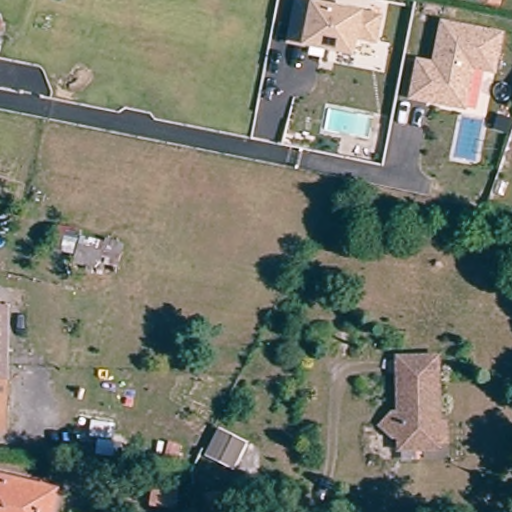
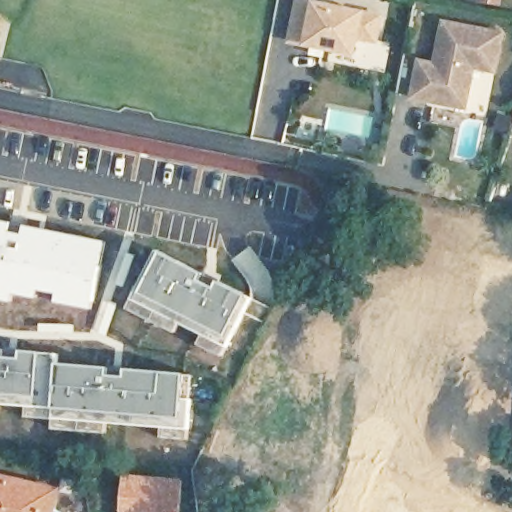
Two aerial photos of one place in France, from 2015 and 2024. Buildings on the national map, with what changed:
unchanged [(312,52),(313,45),(292,41),(300,1),(382,17),(377,41),(358,37),(355,53),(325,48),(324,55),(312,52)]
unchanged [(413,98),(420,61),(436,65),(444,23),(503,34),(495,72),(474,68),(470,89),(466,109),(446,105),(429,101),(413,98)]
unchanged [(512,109),(508,119),(496,114),(501,100),(512,104),(512,109)]
new [(105,241),(91,310),(53,303),(55,296),(38,293),(36,299),(13,295),(12,303),(0,301),(0,220),(105,241)]
new [(249,245),(268,274),(273,286),(274,294),(271,294),(268,301),(253,295),(252,294),(230,259),(249,245)]
new [(159,249),(252,296),(221,357),(196,345),(200,335),(179,325),(174,333),(126,310),(159,249)]
new [(60,353),(60,363),(57,362),(50,421),(22,418),(23,407),(0,406),(0,411),(0,348),(60,353)]
demolished [(440,354),(438,418),(448,418),(448,435),(438,435),(437,444),(398,443),(378,424),(391,410),(398,410),(399,369),(407,369),(407,353),(440,354)]
new [(50,421),(57,362),(60,363),(110,366),(192,374),(187,431),(106,424),(105,434),(49,430),(50,421)]
new [(121,472),(183,478),(181,512),(118,512),(121,472)]
unchanged [(51,498),(47,512),(0,512),(0,484),(51,498)]
demolished [(145,508),(147,489),(172,492),(170,511),(145,508)]

